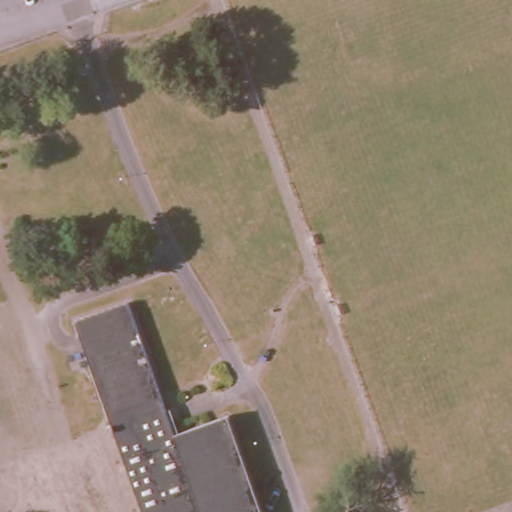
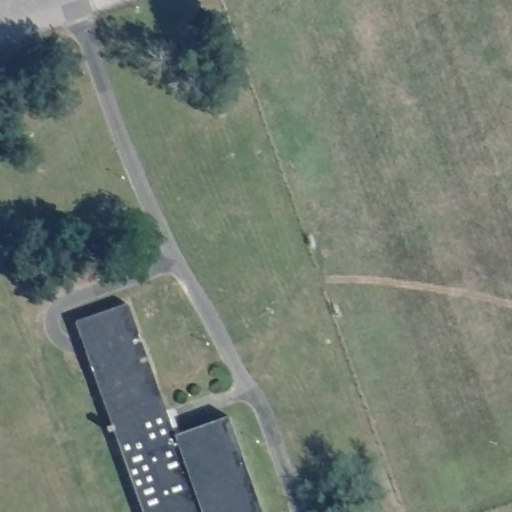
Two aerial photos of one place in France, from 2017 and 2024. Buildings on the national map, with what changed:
unchanged [(229,410),(267,512),(141,512),(68,314),(128,296),(175,428),(229,410)]

